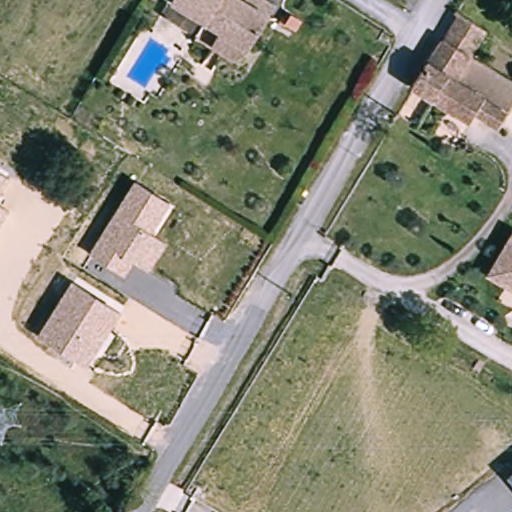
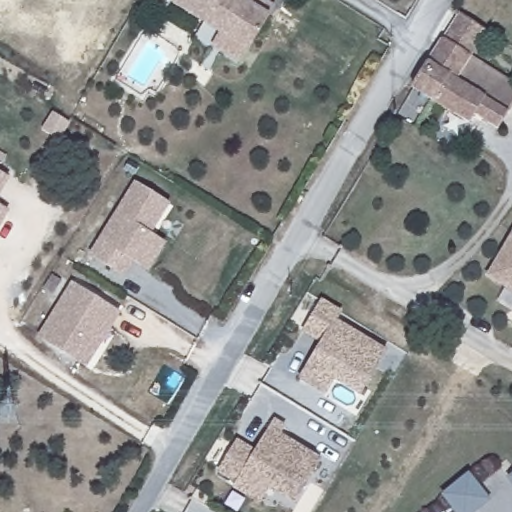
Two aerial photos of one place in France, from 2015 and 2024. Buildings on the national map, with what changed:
unchanged [(153,4),(146,0),(156,0),(153,4)]
unchanged [(210,17),(182,0),(279,0),(273,9),(252,43),(244,57),(201,31),(210,17)]
unchanged [(477,112),(471,121),(415,84),(421,75),(444,37),(456,17),(460,10),(485,28),(469,53),(512,82),(512,110),(500,127),(477,112)]
unchanged [(8,176),(0,191),(0,172),(8,176)]
unchanged [(152,233),(167,243),(151,271),(135,261),(126,276),(90,254),(136,182),(172,204),(152,233)]
unchanged [(0,225),(0,206),(8,211),(0,225)]
unchanged [(512,233),(512,291),(486,274),(512,233)]
unchanged [(89,365),(39,338),(71,282),(121,312),(89,365)]
new [(341,309),(336,317),(387,348),(361,392),(309,360),(322,339),(303,328),(322,297),(341,309)]
new [(335,376),(325,391),(300,376),(309,360),(335,376)]
new [(217,470),(236,439),(255,450),(269,427),(274,418),(286,426),(281,434),(320,458),(294,501),(268,486),(260,501),(233,485),(236,480),(217,470)]
new [(476,512),(456,512),(440,495),(468,472),(491,500),(476,512)]
unchanged [(512,473),(512,483),(507,477),(512,473)]

